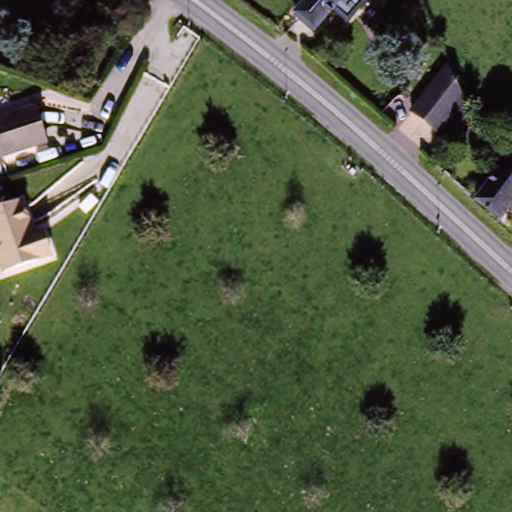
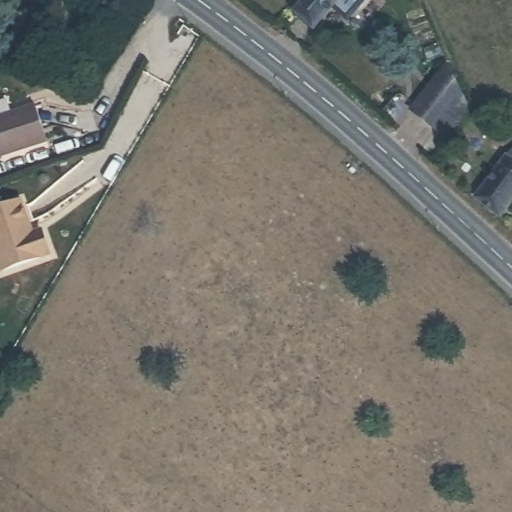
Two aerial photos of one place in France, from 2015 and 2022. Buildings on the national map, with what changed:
unchanged [(299,0),(330,0),(307,25),(290,11),(299,0)]
unchanged [(442,62),(469,105),(447,135),(409,108),(442,62)]
unchanged [(0,151),(0,123),(34,110),(46,144),(3,159),(0,151)]
unchanged [(512,159),(512,198),(509,202),(490,184),(512,159)]
unchanged [(3,274),(0,263),(0,211),(26,204),(35,239),(45,237),(52,260),(3,274)]

